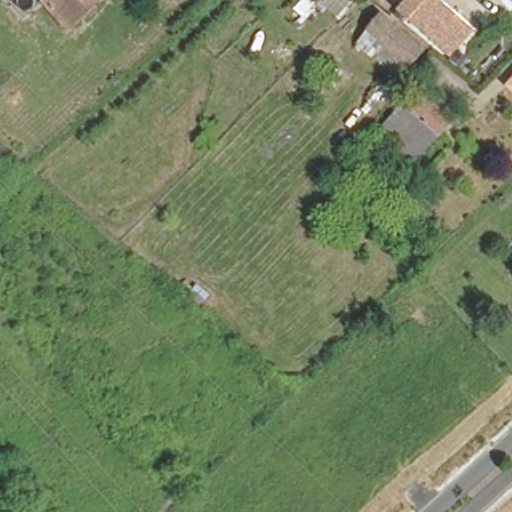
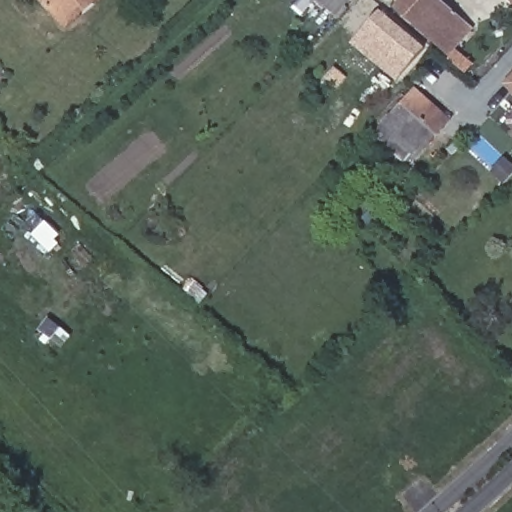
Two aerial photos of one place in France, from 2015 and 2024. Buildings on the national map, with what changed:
unchanged [(48,0),(97,0),(69,25),(48,0)]
unchanged [(320,0),(353,0),(339,16),(320,0)]
unchanged [(399,6),(404,0),(438,0),(469,28),(448,52),(399,6)]
unchanged [(425,50),(416,61),(409,68),(407,66),(397,78),(357,43),(367,31),(364,29),(381,11),(387,16),(425,50)]
unchanged [(512,74),(512,87),(506,81),(512,74)]
unchanged [(410,83),(447,115),(433,130),(444,141),(417,172),(370,130),(410,83)]

